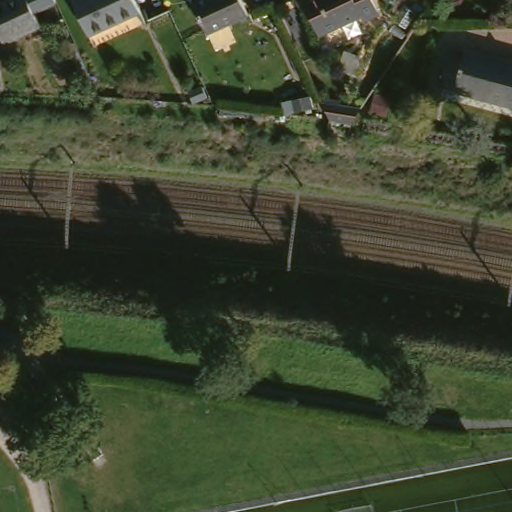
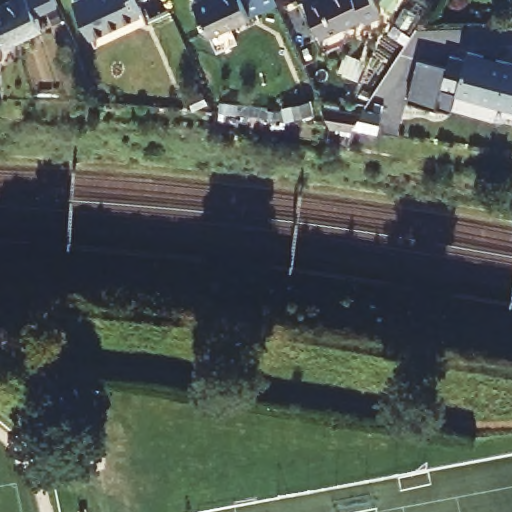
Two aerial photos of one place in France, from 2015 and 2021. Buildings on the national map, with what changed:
unchanged [(7,47),(0,34),(0,3),(6,0),(29,0),(44,29),(7,47)]
unchanged [(90,36),(73,0),(133,0),(139,12),(90,36)]
unchanged [(204,39),(190,5),(201,0),(235,0),(244,21),(204,39)]
unchanged [(307,1),(309,0),(375,0),(385,19),(371,26),(368,22),(326,42),(307,1)]
unchanged [(438,89),(447,57),(462,60),(464,51),(512,63),(512,107),(438,89)]
new [(438,89),(455,93),(451,109),(408,98),(419,60),(444,67),(438,89)]
unchanged [(363,114),(355,127),(333,123),(326,107),(363,114)]

